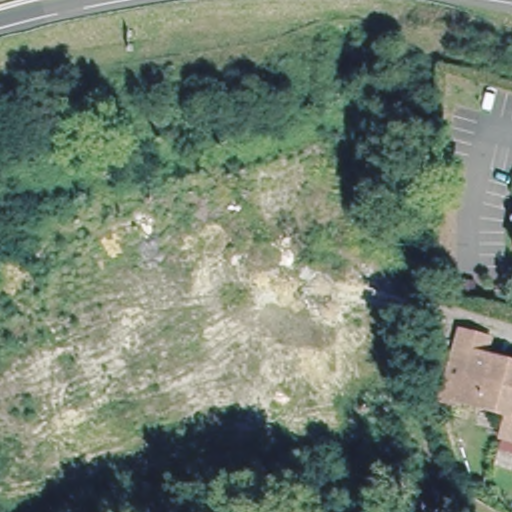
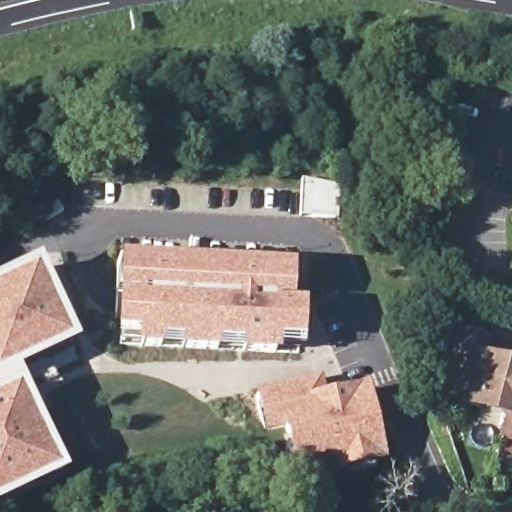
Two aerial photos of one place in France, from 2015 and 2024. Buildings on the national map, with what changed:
new [(339,187),(337,220),(300,217),(302,179),(339,187)]
new [(292,267),(292,305),(303,306),(302,343),(279,342),(278,358),(242,356),(242,347),(218,346),(217,355),(179,354),(180,343),(161,343),(161,353),(137,352),(137,335),(117,334),(120,259),(292,267)]
new [(40,260),(79,344),(19,374),(68,475),(0,507),(0,278),(40,260)]
unchanged [(447,381),(455,360),(460,335),(487,341),(483,359),(512,367),(512,443),(501,440),(506,417),(456,403),(458,393),(461,386),(447,381)]
new [(326,395),(368,385),(387,461),(335,474),(333,469),(295,477),(282,430),(264,434),(255,391),(322,377),(326,395)]

